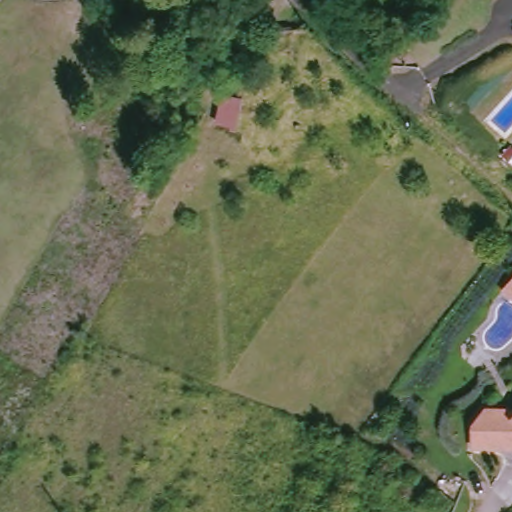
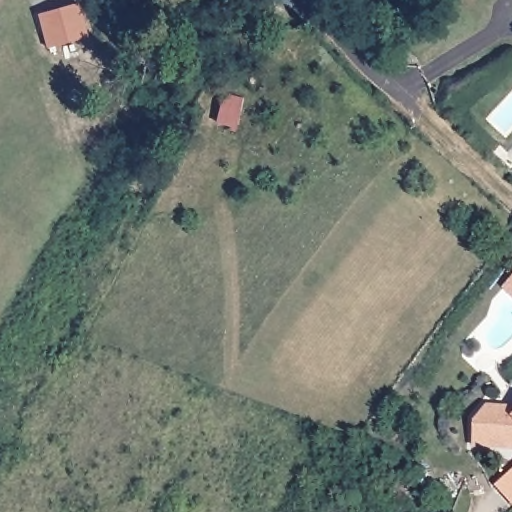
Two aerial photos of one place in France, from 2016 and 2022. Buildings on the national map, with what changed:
new [(80,4),(89,38),(47,48),(38,15),(80,4)]
unchanged [(512,276),(512,297),(501,287),(512,276)]
unchanged [(477,418),(480,400),(497,402),(503,409),(512,401),(512,446),(463,442),(466,418),(477,418)]
unchanged [(512,460),(512,462),(510,461),(512,460)]

